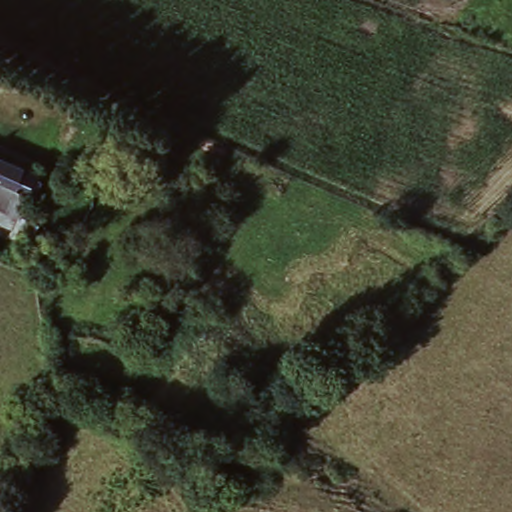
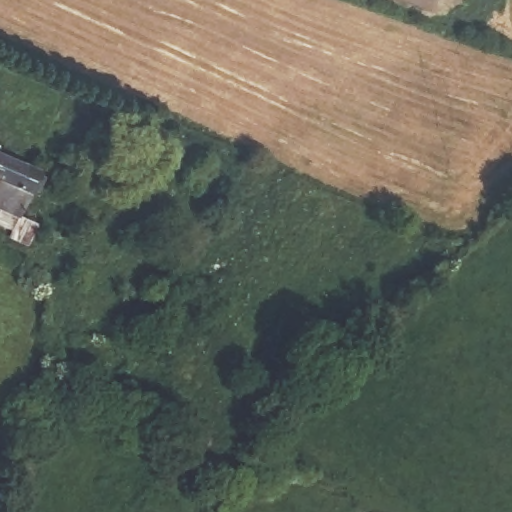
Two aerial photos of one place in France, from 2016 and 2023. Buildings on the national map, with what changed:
unchanged [(35,237),(0,226),(0,159),(56,184),(35,237)]

